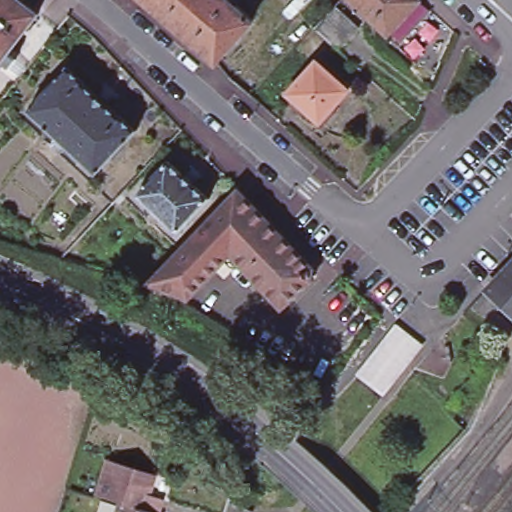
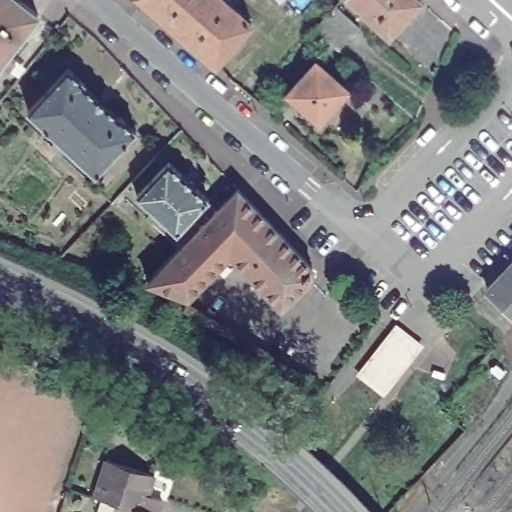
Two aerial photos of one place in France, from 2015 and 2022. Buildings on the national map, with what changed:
unchanged [(0,0),(20,0),(34,11),(0,53),(0,0)]
unchanged [(219,59),(151,0),(230,0),(253,20),(219,59)]
unchanged [(354,0),(415,0),(387,31),(354,0)]
unchanged [(360,29),(339,52),(315,31),(338,7),(360,29)]
unchanged [(313,59),(345,87),(316,119),(285,91),(313,59)]
unchanged [(66,63),(82,77),(80,80),(117,115),(119,113),(135,127),(95,172),(26,108),(66,63)]
unchanged [(171,163),(212,201),(180,235),(140,197),(171,163)]
unchanged [(231,253),(202,225),(241,185),(270,215),(231,253)]
unchanged [(317,264),(316,277),(284,304),(231,253),(270,215),(317,264)]
unchanged [(202,225),(231,253),(188,294),(186,297),(150,280),(202,225)]
unchanged [(485,286),(512,258),(512,312),(485,286)]
unchanged [(112,501),(87,492),(97,462),(143,477),(139,492),(153,497),(148,512),(108,512),(112,501)]

